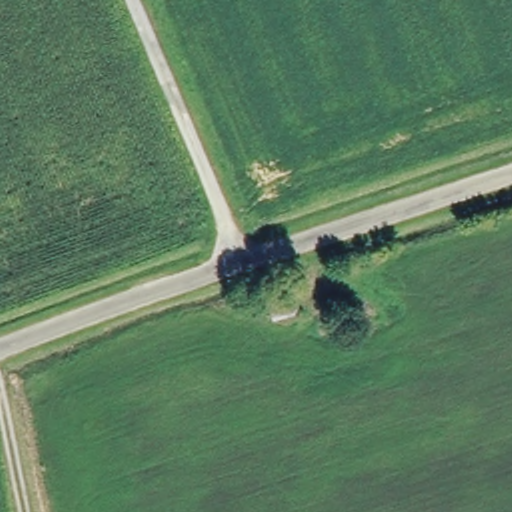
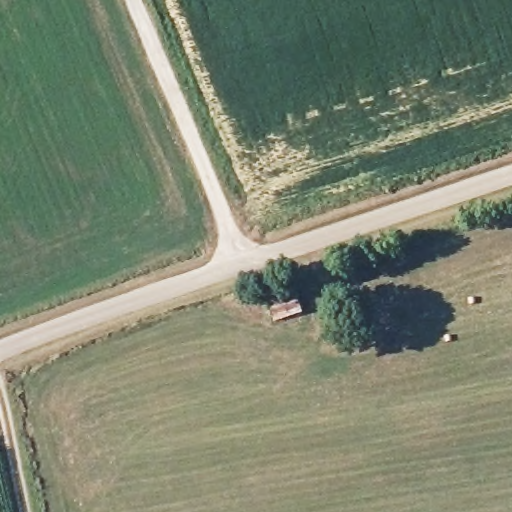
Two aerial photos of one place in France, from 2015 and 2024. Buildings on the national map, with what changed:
unchanged [(302,310),(272,314),(267,287),(293,277),(302,310)]

